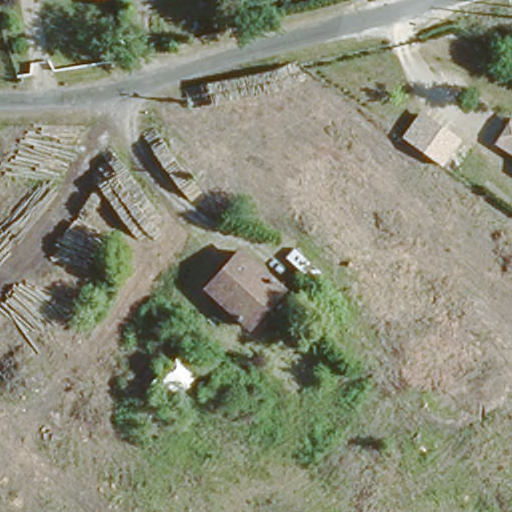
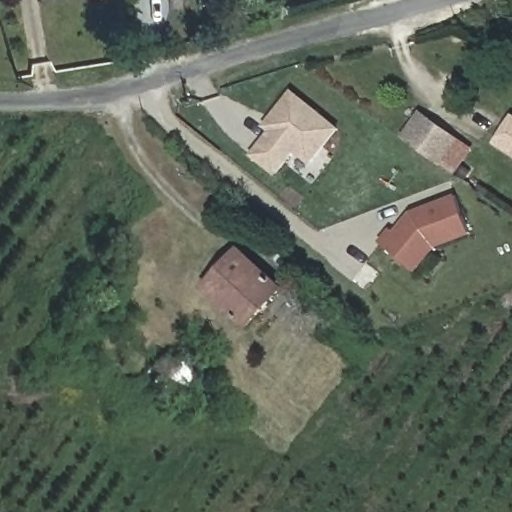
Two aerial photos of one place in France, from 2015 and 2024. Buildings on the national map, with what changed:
new [(261,126),(267,118),(288,91),(336,128),(308,163),(292,151),(273,175),(250,155),(268,132),(261,126)]
unchanged [(402,138),(422,110),(463,140),(445,166),(402,138)]
unchanged [(512,128),(512,144),(505,138),(512,128)]
new [(410,212),(456,194),(471,234),(435,247),(416,272),(378,242),(390,228),(394,231),(410,212)]
unchanged [(281,280),(249,322),(206,287),(237,246),(281,280)]
unchanged [(185,370),(170,389),(156,380),(171,359),(185,370)]

